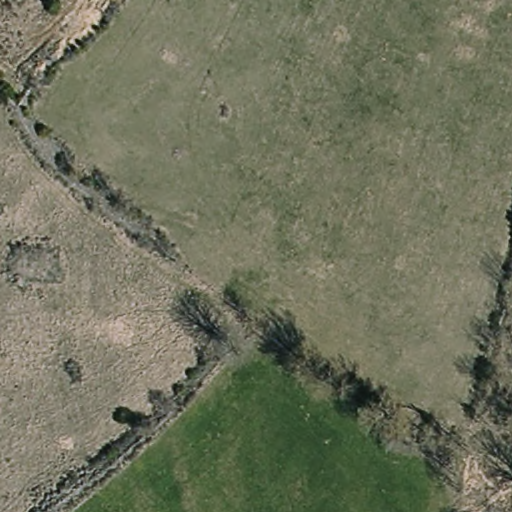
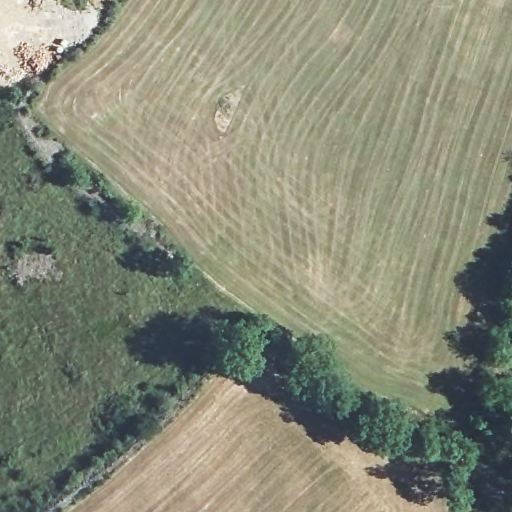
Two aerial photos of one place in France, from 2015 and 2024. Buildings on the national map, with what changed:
[]

